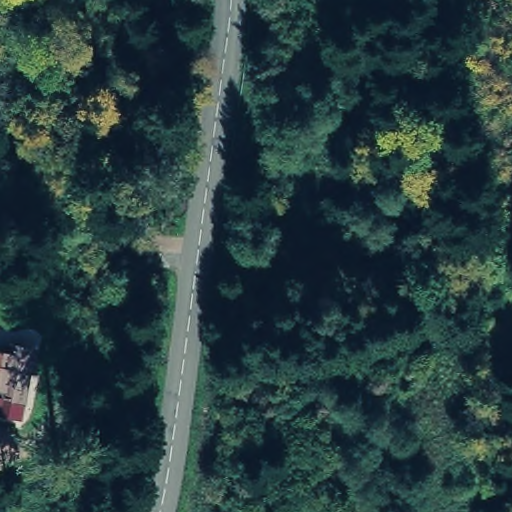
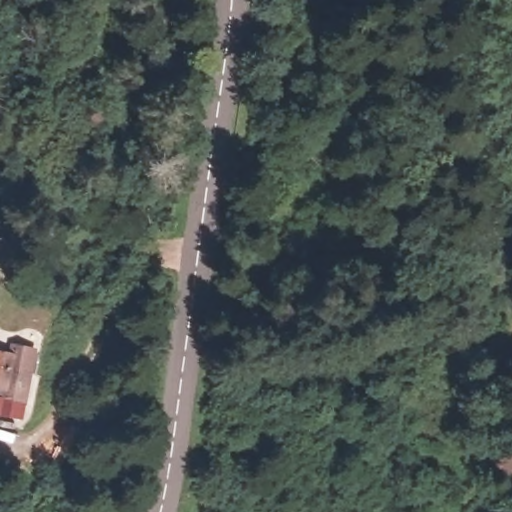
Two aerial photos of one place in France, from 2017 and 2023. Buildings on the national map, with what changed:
unchanged [(144,193),(143,224),(110,218),(111,187),(144,193)]
unchanged [(18,355),(18,370),(31,371),(24,400),(3,396),(7,388),(0,387),(0,351),(18,355)]

